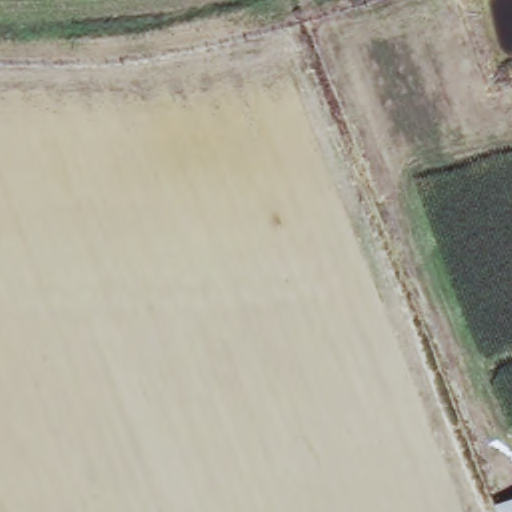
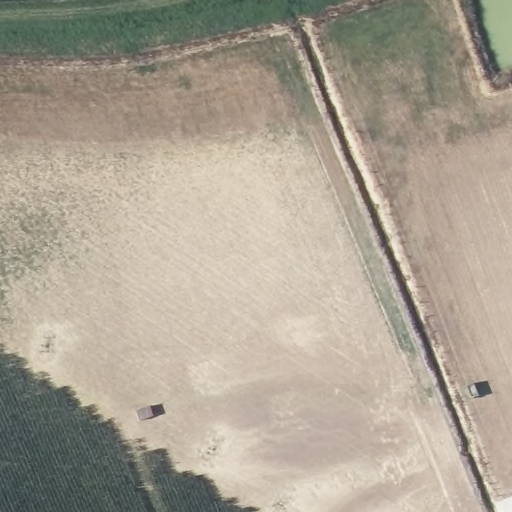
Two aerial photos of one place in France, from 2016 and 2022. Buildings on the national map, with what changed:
unchanged [(512,497),(512,512),(496,512),(493,504),(512,497)]

